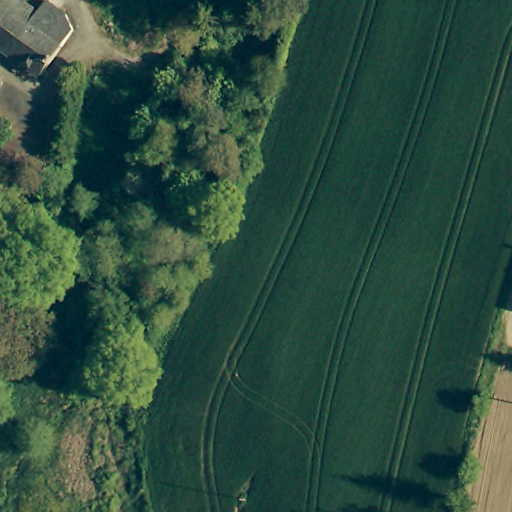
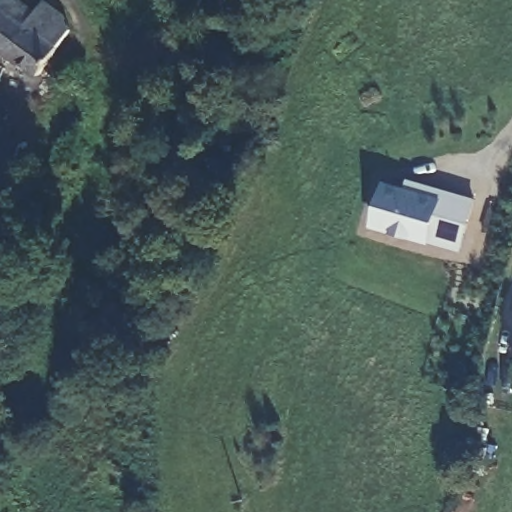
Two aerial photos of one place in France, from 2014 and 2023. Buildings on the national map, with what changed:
unchanged [(0,48),(0,0),(23,0),(39,11),(47,0),(48,0),(66,14),(68,20),(71,28),(40,75),(0,48)]
unchanged [(61,89),(56,125),(41,123),(46,86),(61,89)]
unchanged [(16,140),(0,199),(0,150),(4,137),(16,140)]
new [(414,232),(379,220),(392,181),(411,188),(415,178),(461,194),(479,200),(467,234),(462,248),(414,232)]

